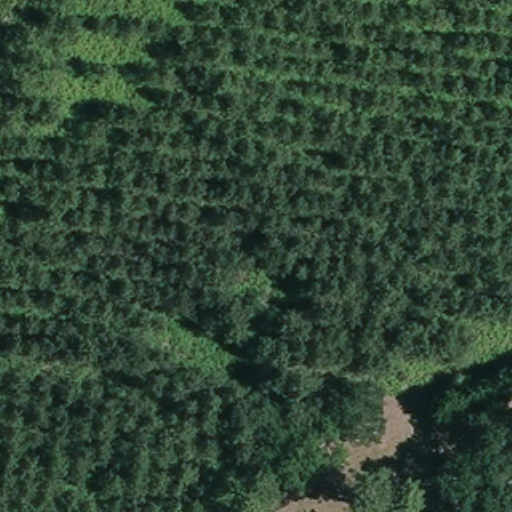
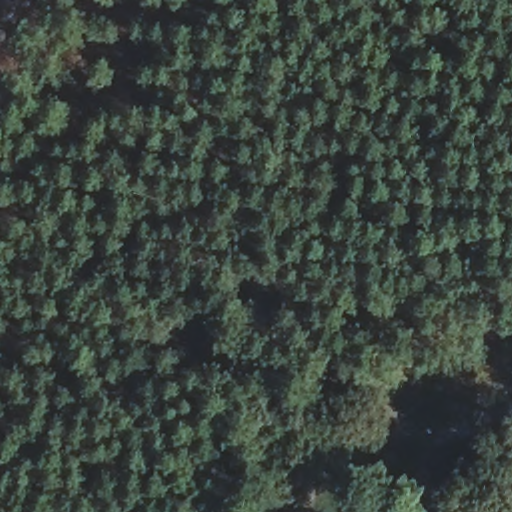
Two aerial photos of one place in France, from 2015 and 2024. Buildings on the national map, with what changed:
[]

